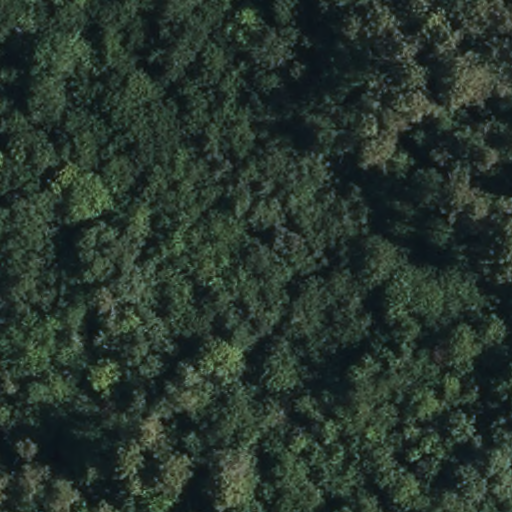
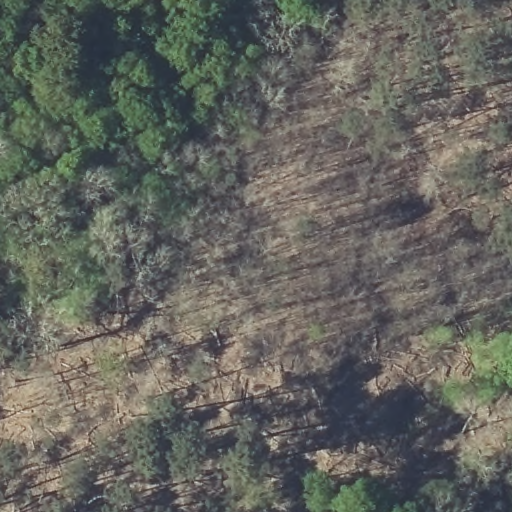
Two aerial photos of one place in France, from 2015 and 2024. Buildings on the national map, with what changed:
[]

